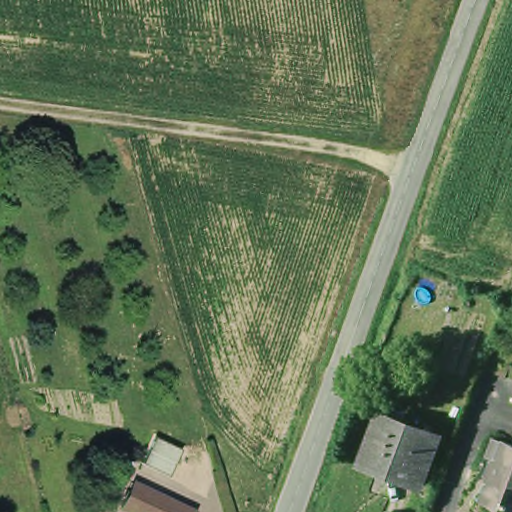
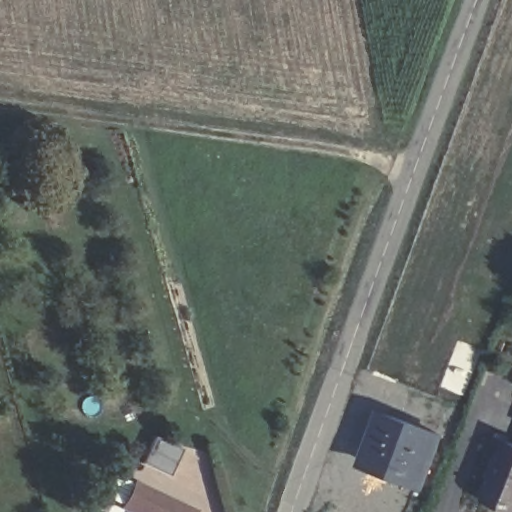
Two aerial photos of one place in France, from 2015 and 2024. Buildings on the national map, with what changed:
unchanged [(378,408),(426,427),(441,399),(464,409),(449,454),(442,453),(425,496),(357,469),(378,408)]
unchanged [(154,438),(181,450),(169,477),(141,464),(154,438)]
unchanged [(508,499),(490,492),(511,444),(512,444),(512,505),(508,503),(508,499)]
unchanged [(120,511),(122,506),(133,486),(191,512),(122,512),(120,511)]

